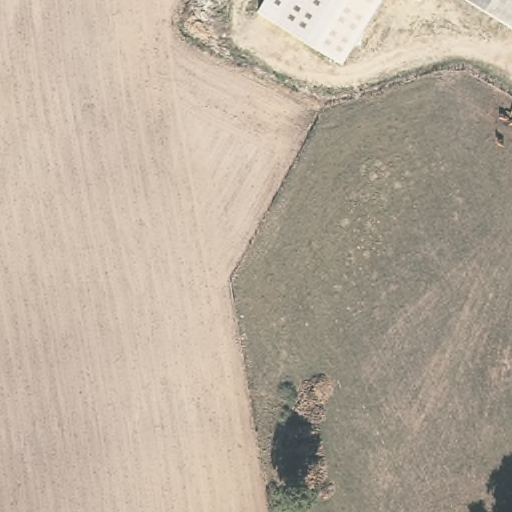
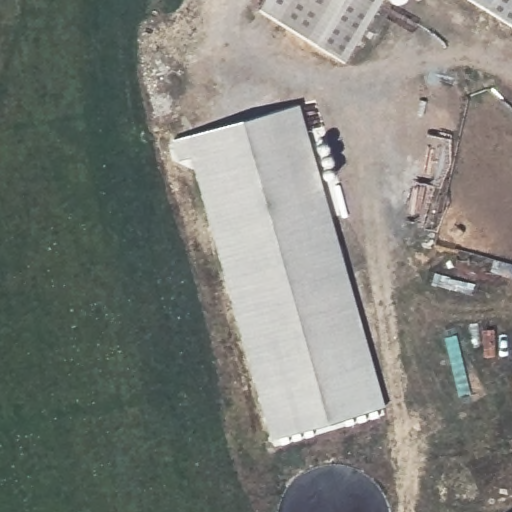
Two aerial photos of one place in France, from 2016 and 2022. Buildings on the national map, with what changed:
unchanged [(258,8),(263,0),(381,0),(343,62),(258,8)]
unchanged [(465,0),(512,0),(512,29),(465,0)]
new [(385,407),(270,439),(190,156),(179,159),(173,139),(298,104),(385,407)]

